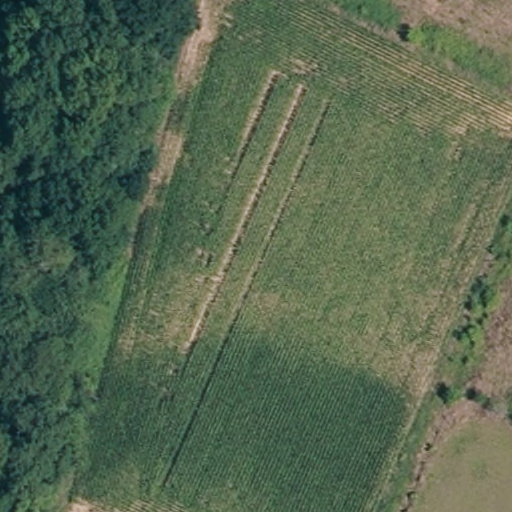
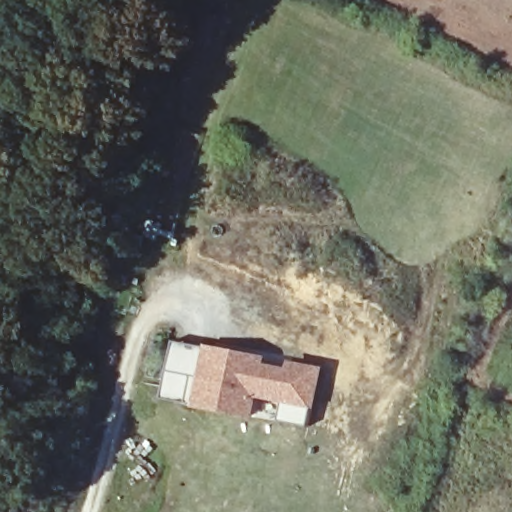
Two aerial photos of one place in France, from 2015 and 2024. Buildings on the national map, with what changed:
new [(203,348),(204,342),(266,357),(265,363),(286,367),(287,359),(321,366),(313,409),(310,408),(307,424),(280,420),(283,402),(257,397),(254,419),(191,408),(192,403),(165,398),(176,341),(203,348)]

